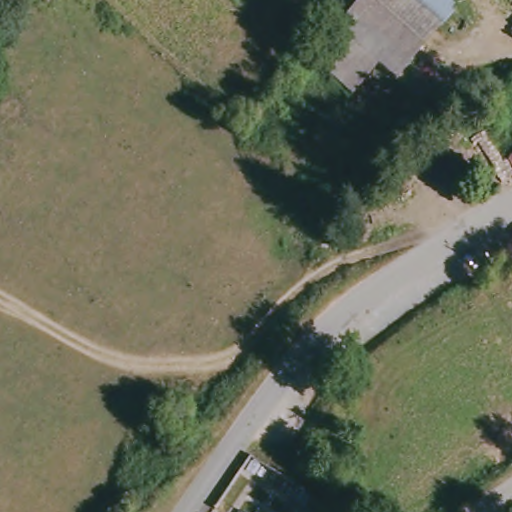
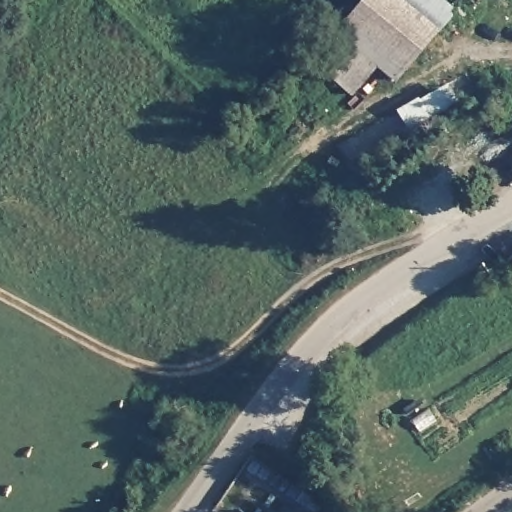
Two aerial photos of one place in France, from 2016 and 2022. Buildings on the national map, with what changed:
unchanged [(408,0),(438,28),(405,66),(385,49),(347,15),(360,0),(408,0)]
unchanged [(352,87),(312,54),(347,15),(385,49),(352,87)]
unchanged [(412,122),(403,106),(427,94),(429,97),(453,85),(460,97),(412,122)]
unchanged [(512,141),(512,156),(505,145),(512,141)]

